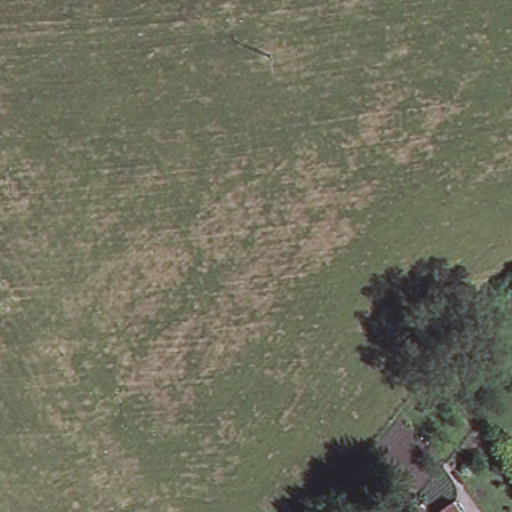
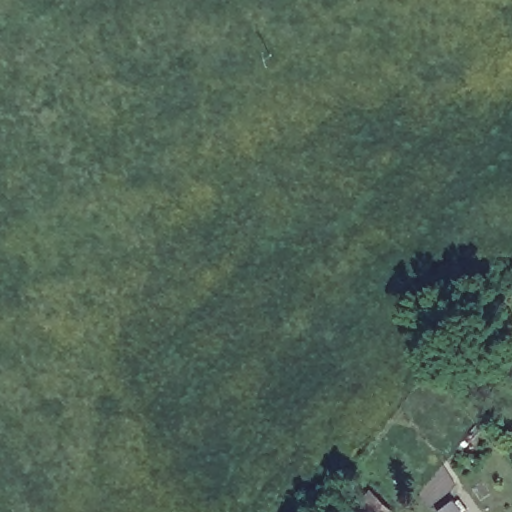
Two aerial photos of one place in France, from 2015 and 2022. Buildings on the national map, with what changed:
unchanged [(393,508),(390,512),(365,512),(359,506),(374,490),(393,508)]

